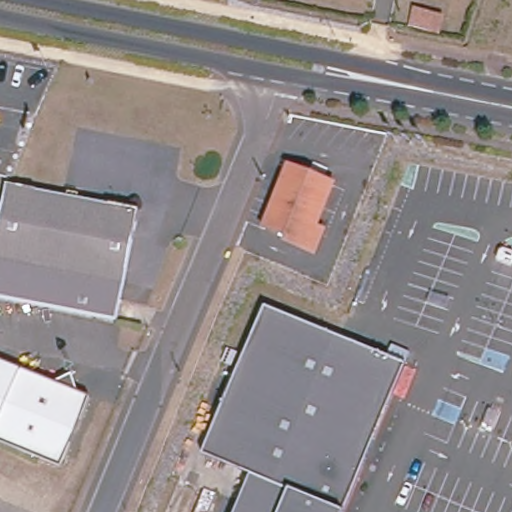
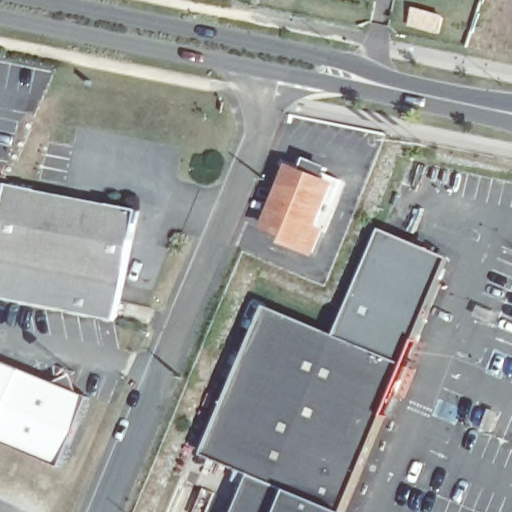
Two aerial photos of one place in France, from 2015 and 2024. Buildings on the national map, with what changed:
unchanged [(420,0),(429,0),(452,7),(442,39),(411,30),(420,0)]
unchanged [(287,236),(264,228),(286,168),(330,185),(314,229),(307,245),(287,236)]
unchanged [(139,215),(114,326),(43,311),(0,300),(0,224),(7,189),(139,215)]
new [(405,363),(337,335),(380,231),(449,259),(405,363)]
unchanged [(201,452),(256,322),(264,303),(311,323),(405,363),(343,512),(251,473),(201,452)]
unchanged [(56,388),(70,380),(80,400),(89,404),(62,472),(0,446),(0,364),(56,388)]
unchanged [(235,512),(236,508),(251,473),(343,512),(235,512)]

